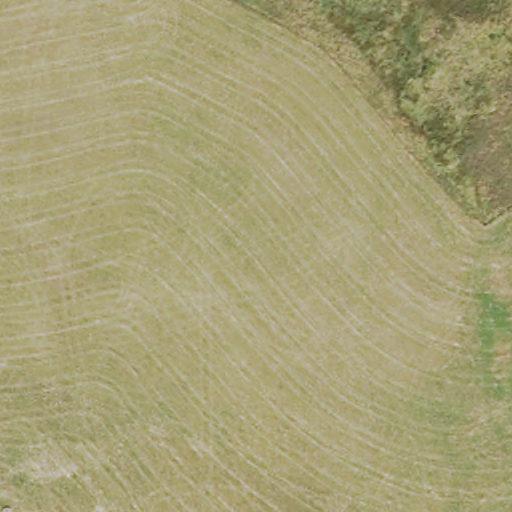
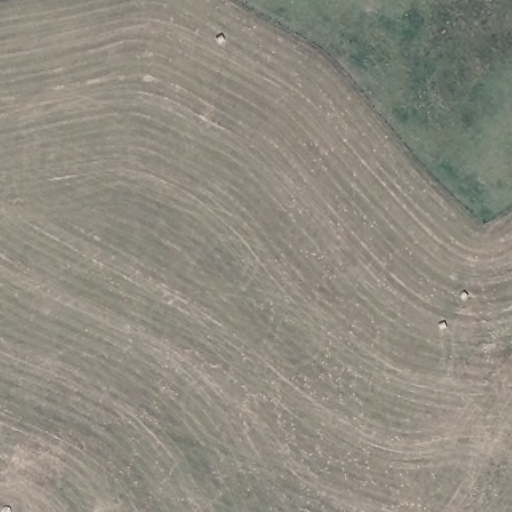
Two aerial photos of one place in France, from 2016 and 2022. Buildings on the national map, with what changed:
[]

